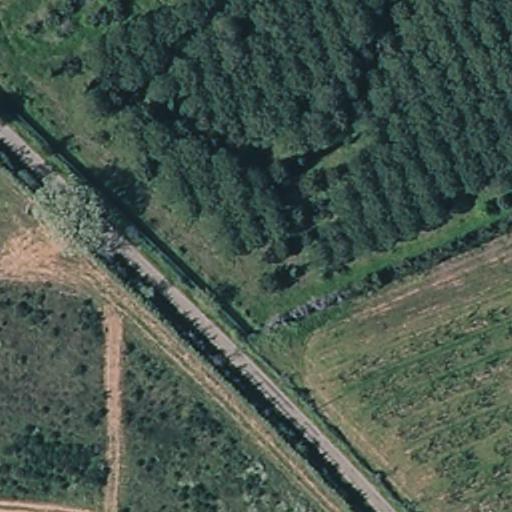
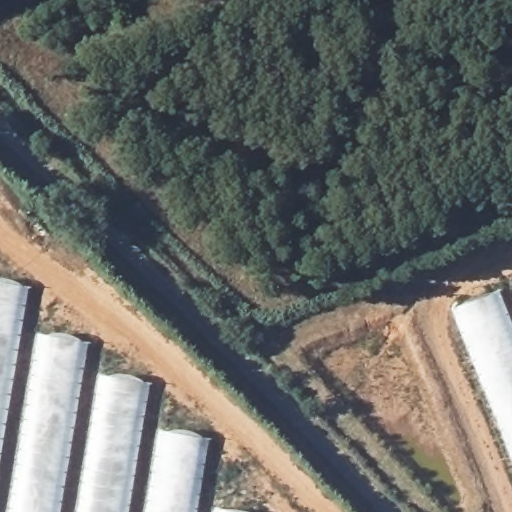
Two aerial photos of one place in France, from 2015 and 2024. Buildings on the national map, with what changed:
new [(28,287),(20,334),(87,342),(82,372),(150,383),(141,429),(210,439),(197,507),(230,512),(0,512),(0,283),(28,287)]
new [(512,285),(512,447),(455,308),(512,285)]

